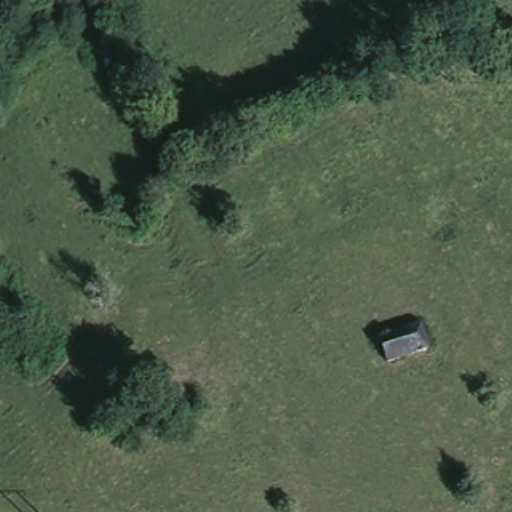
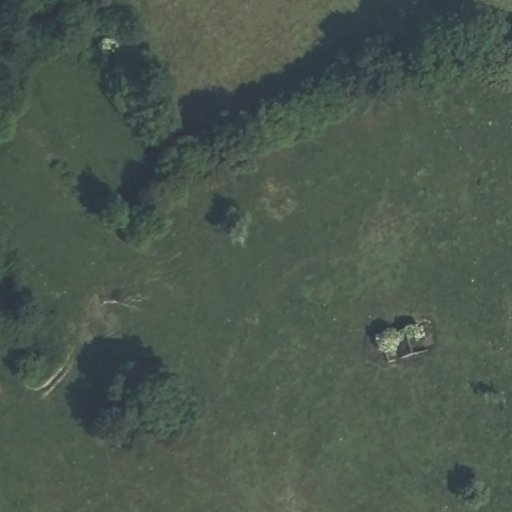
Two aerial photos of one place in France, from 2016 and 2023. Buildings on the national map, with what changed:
unchanged [(378,325),(417,307),(430,335),(388,352),(378,325)]

